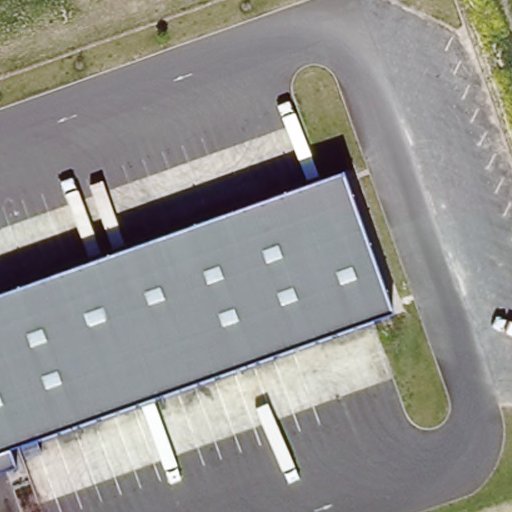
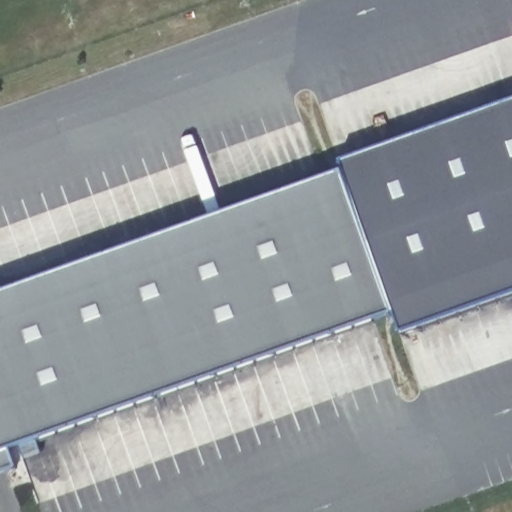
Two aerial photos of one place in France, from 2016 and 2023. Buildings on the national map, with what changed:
new [(338,163),(512,102),(512,294),(398,333),(390,313),(341,172),(338,163)]
unchanged [(341,172),(390,313),(7,448),(14,466),(0,472),(0,294),(341,172)]

